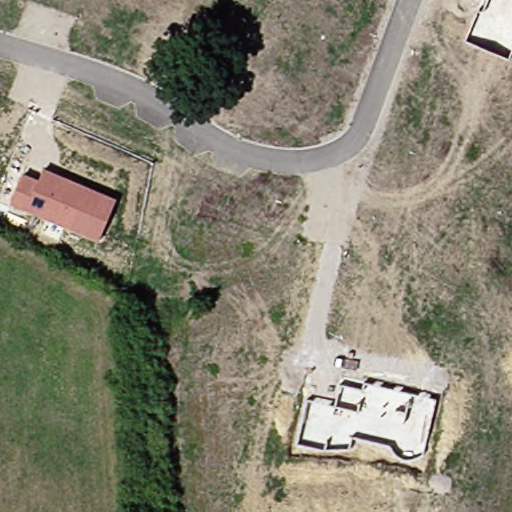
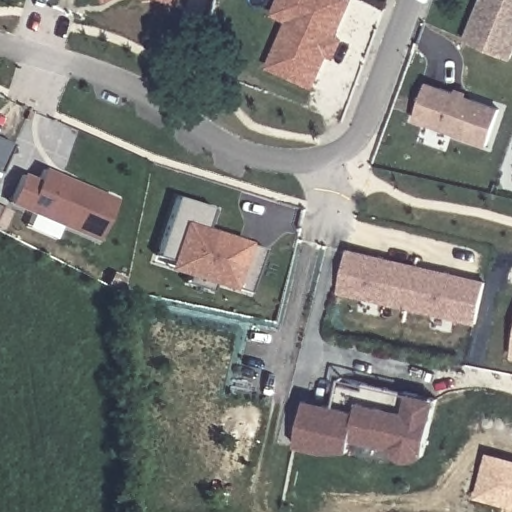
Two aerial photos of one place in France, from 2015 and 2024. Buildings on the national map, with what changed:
new [(102,5),(100,0),(111,0),(102,5)]
new [(176,7),(157,0),(179,0),(176,7)]
new [(310,87),(268,68),(297,3),(291,0),(350,0),(310,87)]
new [(297,3),(288,22),(273,15),(280,0),(291,0),(297,3)]
unchanged [(462,42),(480,0),(512,0),(512,56),(510,61),(462,42)]
unchanged [(486,148),(412,121),(426,83),(500,108),(486,148)]
unchanged [(11,205),(22,174),(40,180),(45,169),(116,200),(98,242),(11,205)]
new [(216,205),(209,229),(234,235),(231,244),(247,249),(250,240),(268,246),(255,291),(219,280),(221,270),(179,257),(178,260),(160,254),(180,194),(216,205)]
new [(250,240),(248,249),(231,244),(234,235),(250,240)]
new [(345,253),(482,285),(473,326),(336,293),(345,253)]
new [(177,259),(178,260),(179,257),(221,270),(219,280),(220,280),(216,290),(191,281),(194,272),(175,266),(177,259)]
new [(512,348),(512,359),(510,358),(512,348)]
new [(436,400),(422,458),(412,462),(400,461),(392,456),(388,448),(350,440),(348,451),(325,452),(296,446),(307,400),(335,406),(342,378),(436,400)]
new [(474,498),(487,450),(512,458),(512,512),(508,512),(509,506),(474,498)]

